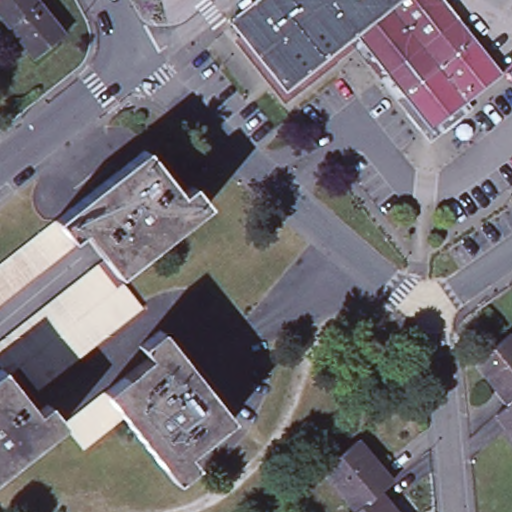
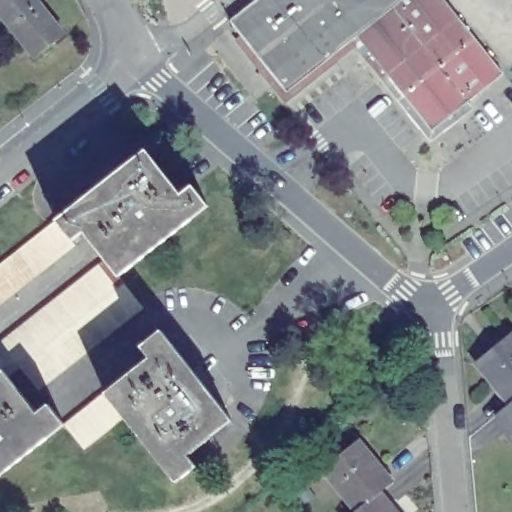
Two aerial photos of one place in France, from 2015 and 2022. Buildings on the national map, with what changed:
unchanged [(60,37),(30,61),(0,22),(0,0),(31,0),(60,37)]
unchanged [(283,94),(226,23),(255,0),(403,0),(355,37),(283,94)]
unchanged [(398,15),(410,29),(371,59),(355,37),(403,0),(416,0),(398,15)]
unchanged [(457,22),(385,77),(371,59),(410,29),(398,15),(416,0),(439,0),(457,22)]
unchanged [(472,42),(401,98),(385,77),(457,22),(472,42)]
unchanged [(428,134),(401,98),(472,42),(501,79),(466,105),(428,134)]
unchanged [(58,215),(147,144),(164,166),(160,169),(178,192),(195,180),(210,200),(119,270),(107,255),(103,250),(107,247),(89,224),(74,236),(79,242),(69,249),(14,292),(0,274),(0,260),(49,222),(58,215)]
unchanged [(7,332),(20,322),(31,313),(44,303),(56,294),(68,285),(82,275),(96,263),(107,255),(118,270),(119,270),(127,281),(144,302),(133,311),(120,322),(105,333),(93,343),(81,352),(70,361),(58,370),(45,381),(34,389),(17,402),(29,417),(46,405),(63,425),(74,416),(87,406),(102,393),(106,391),(124,378),(126,381),(151,363),(138,345),(158,330),(229,421),(209,437),(205,432),(180,452),(193,467),(171,486),(123,421),(108,432),(95,442),(80,453),(60,427),(52,433),(0,474),(0,337),(7,332)]
unchanged [(14,292),(0,302),(0,274),(14,292)]
unchanged [(509,327),(512,331),(512,394),(506,398),(473,355),(509,327)]
unchanged [(512,394),(512,432),(493,409),(506,398),(512,394)]
unchanged [(322,465),(363,435),(396,477),(381,489),(354,510),(322,465)]
unchanged [(381,489),(397,512),(351,512),(354,510),(381,489)]

